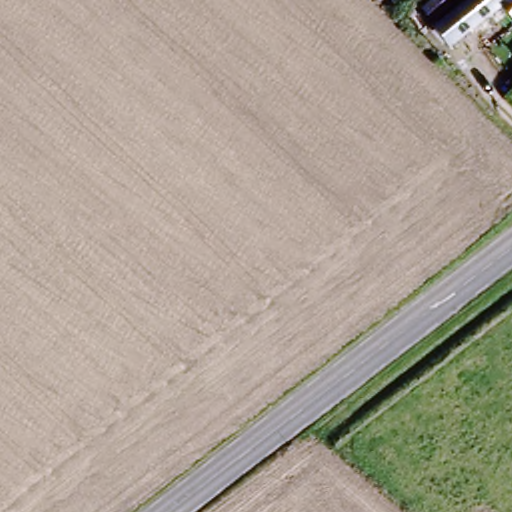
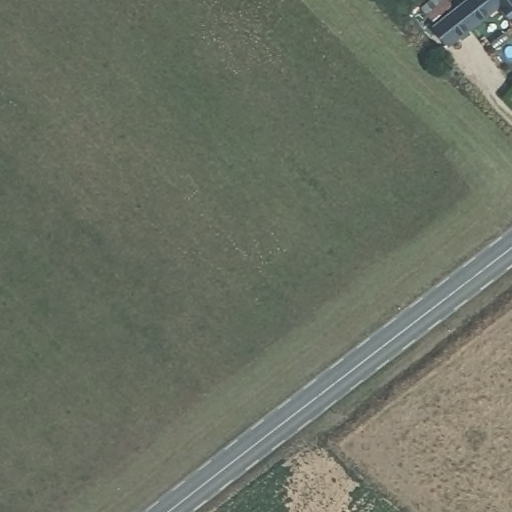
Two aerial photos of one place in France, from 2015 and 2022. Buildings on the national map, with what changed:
unchanged [(467,0),(512,0),(512,18),(501,4),(451,45),(435,26),(467,0)]

